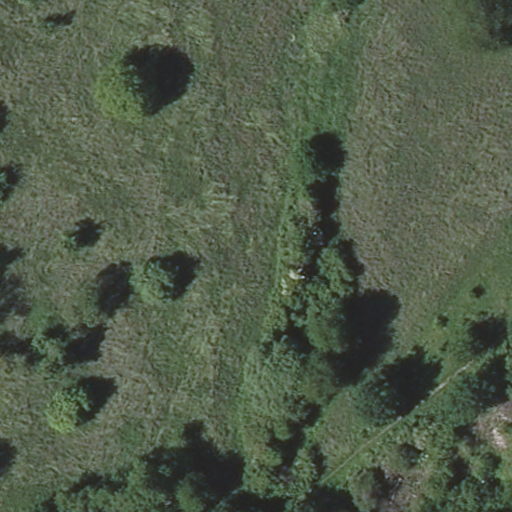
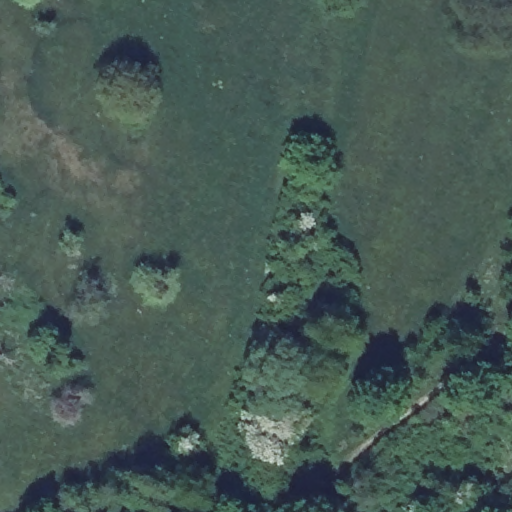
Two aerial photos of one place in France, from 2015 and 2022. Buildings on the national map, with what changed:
[]

